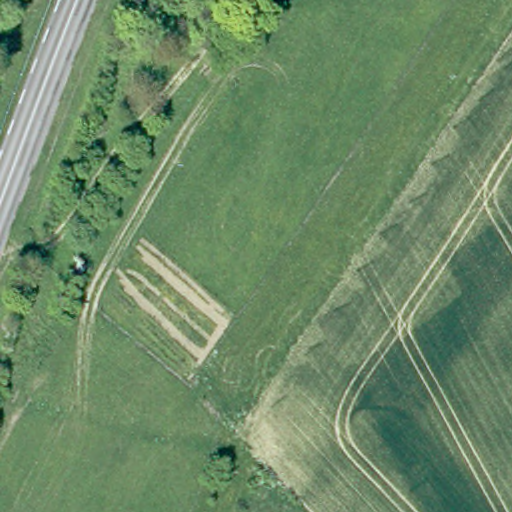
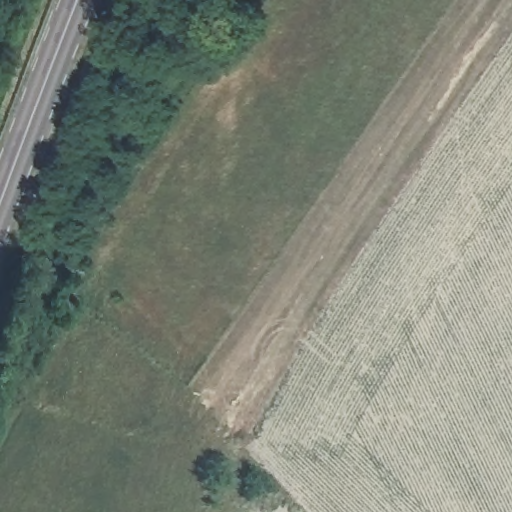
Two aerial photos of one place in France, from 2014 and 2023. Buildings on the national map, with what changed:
[]

